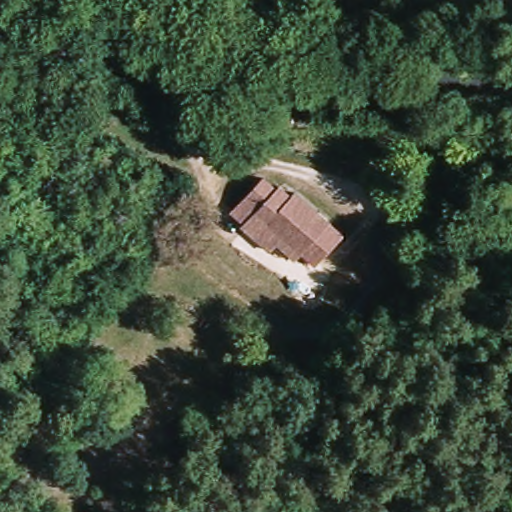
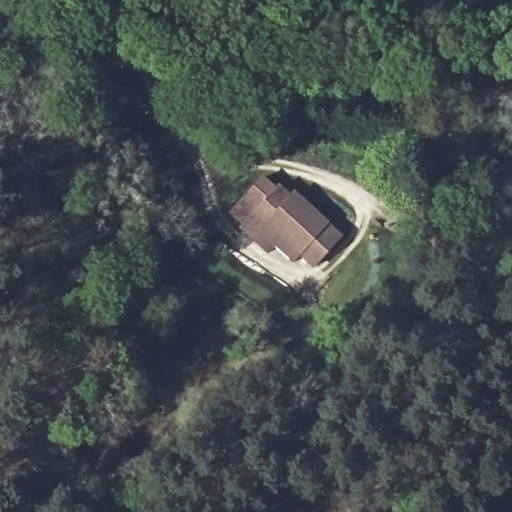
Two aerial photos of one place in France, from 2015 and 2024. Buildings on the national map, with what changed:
unchanged [(317,266),(285,239),(272,254),(244,232),(247,228),(233,215),(263,180),(278,192),(284,188),(294,198),(299,195),(335,225),(344,235),(334,247),(317,266)]
unchanged [(436,252),(390,224),(410,195),(455,223),(436,252)]

